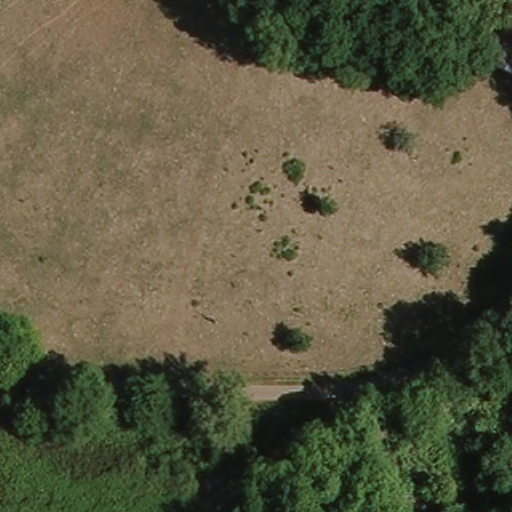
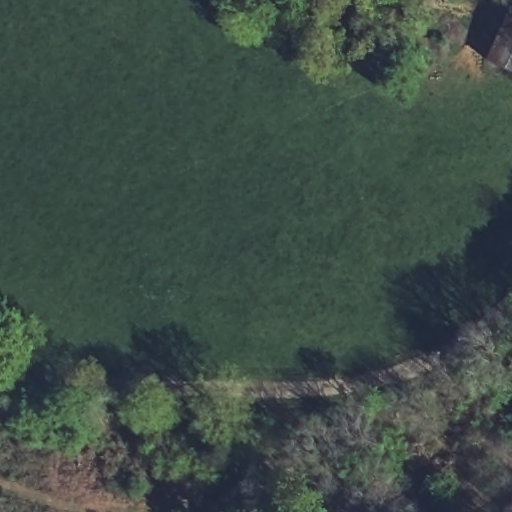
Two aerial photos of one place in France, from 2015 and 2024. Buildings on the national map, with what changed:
unchanged [(497,51),(512,33),(512,63),(497,51)]

